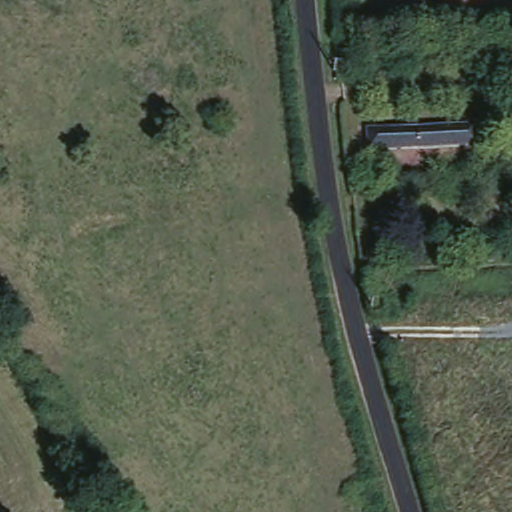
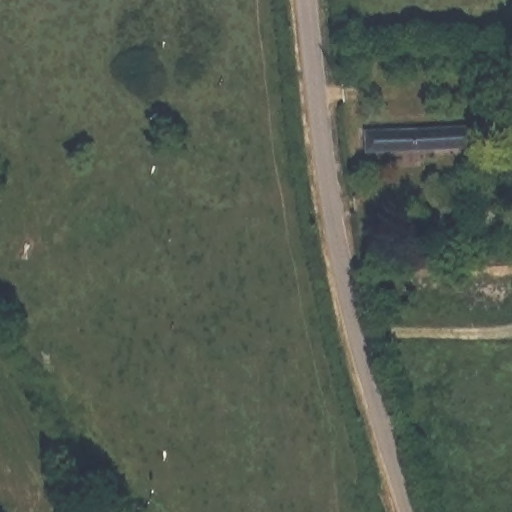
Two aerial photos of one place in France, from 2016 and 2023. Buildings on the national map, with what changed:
unchanged [(377,150),(377,129),(433,125),(473,124),(476,144),(434,145),(434,149),(377,150)]

